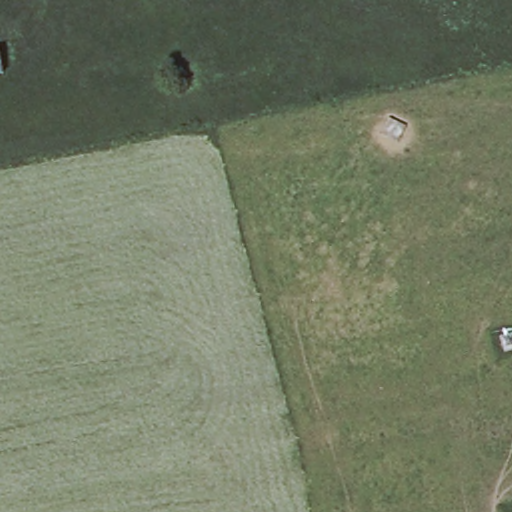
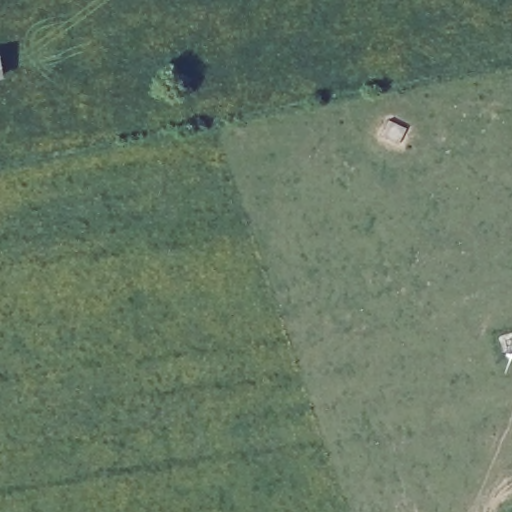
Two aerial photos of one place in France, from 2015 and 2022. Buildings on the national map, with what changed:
unchanged [(4,74),(0,74),(0,52),(4,74)]
unchanged [(389,119),(407,127),(399,143),(381,135),(389,119)]

